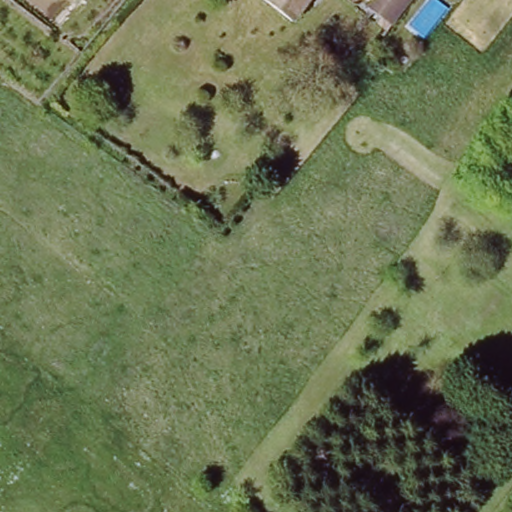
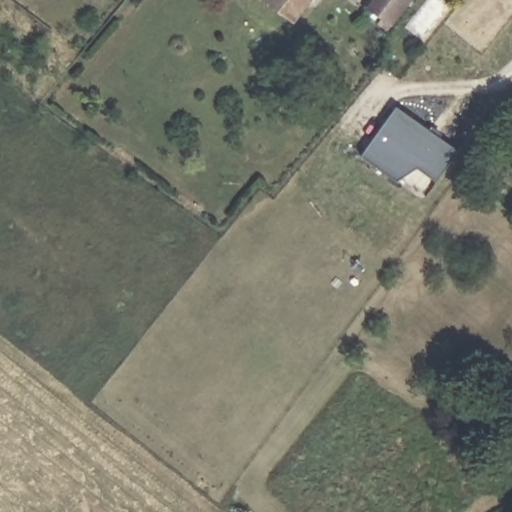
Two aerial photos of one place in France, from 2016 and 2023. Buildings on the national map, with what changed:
unchanged [(314,0),(296,25),(264,1),(264,0),(314,0)]
unchanged [(379,11),(368,0),(403,0),(389,19),(386,23),(376,15),(379,11)]
new [(398,107),(458,150),(436,180),(417,166),(396,179),(361,154),(398,107)]

